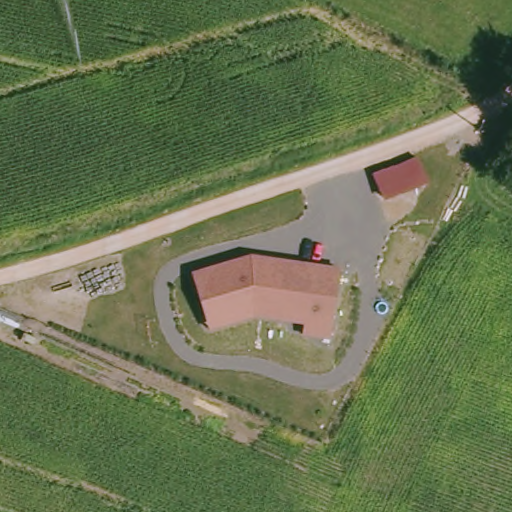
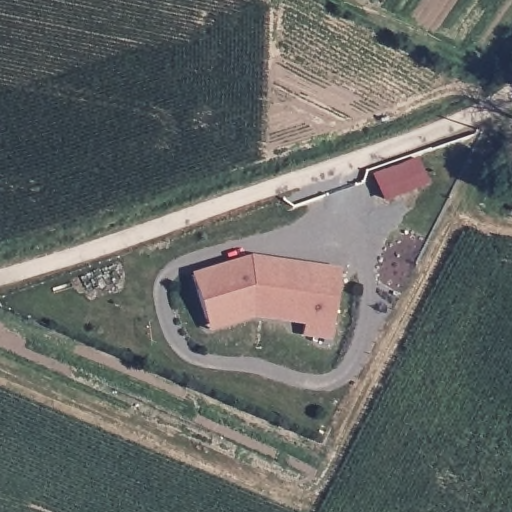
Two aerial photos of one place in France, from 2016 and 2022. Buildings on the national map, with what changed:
unchanged [(375,177),(420,161),(429,187),(385,204),(375,177)]
unchanged [(302,339),(303,327),(255,321),(210,334),(192,276),(251,258),(345,273),(332,343),(302,339)]

